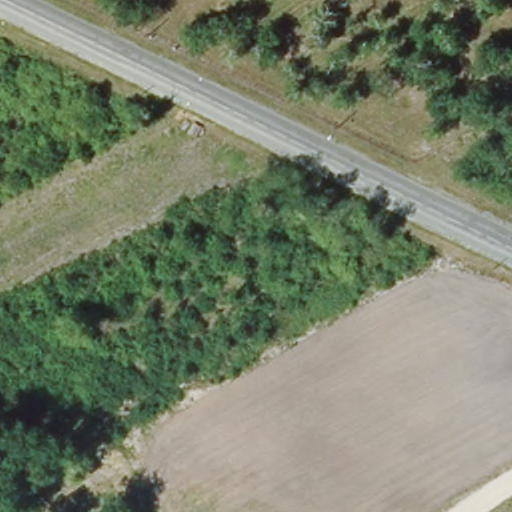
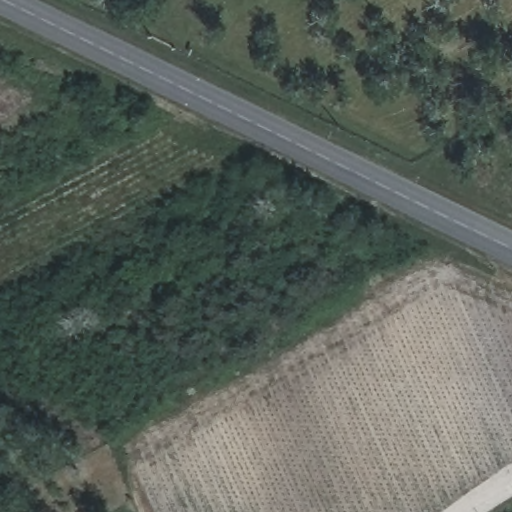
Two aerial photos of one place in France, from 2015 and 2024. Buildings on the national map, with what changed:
[]

